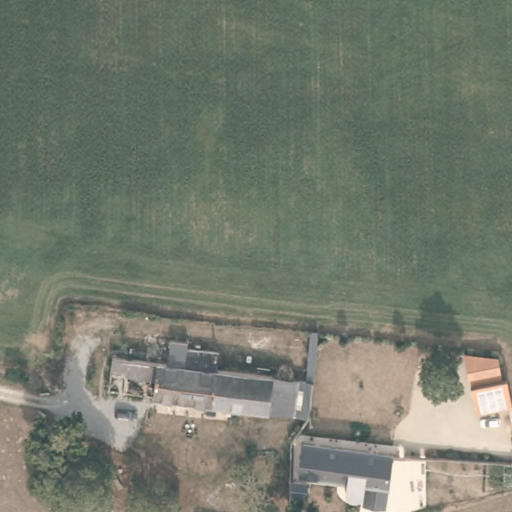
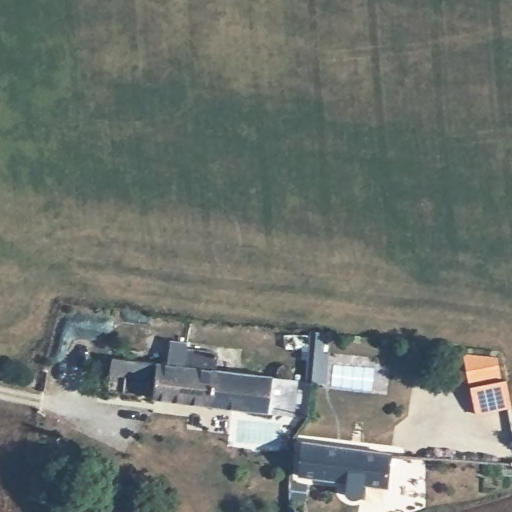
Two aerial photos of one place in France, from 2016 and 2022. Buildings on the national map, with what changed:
unchanged [(154,397),(155,378),(111,373),(113,362),(186,369),(187,348),(222,352),(220,374),(290,380),(302,380),(298,411),(286,410),(154,397)]
unchanged [(495,355),(506,404),(475,415),(458,358),(495,355)]
unchanged [(385,487),(362,486),(360,486),(360,487),(361,488),(361,490),(361,491),(360,492),(360,493),(360,494),(359,496),(358,497),(357,498),(356,498),(355,499),(354,500),(352,500),(350,500),(349,500),(348,500),(347,500),(346,500),(345,499),(344,499),(343,498),(342,497),(341,495),(340,493),(339,492),(339,491),(339,490),(339,488),(340,487),(340,486),(340,485),(341,485),(327,483),(292,481),(297,445),(386,450),(385,487)]

